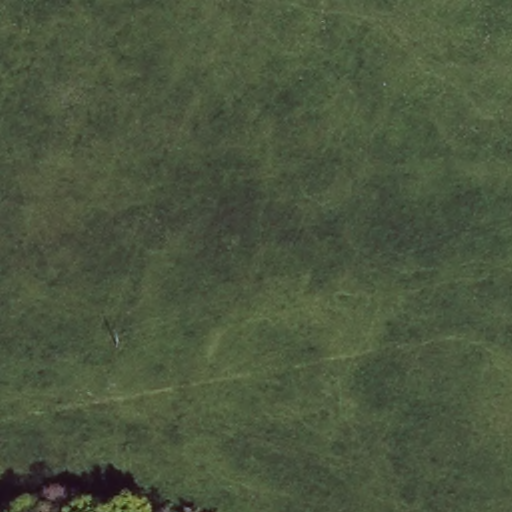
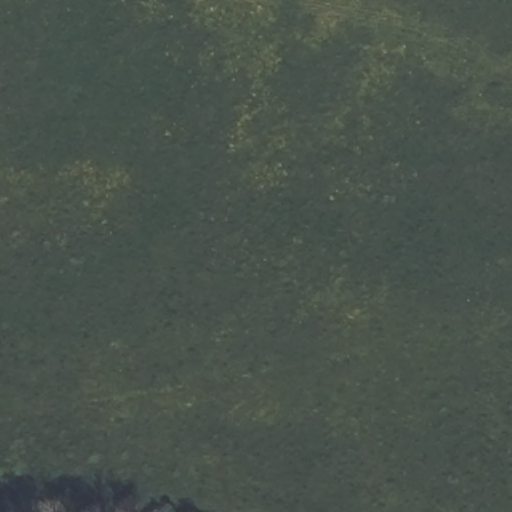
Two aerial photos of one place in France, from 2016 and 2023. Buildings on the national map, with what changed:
[]

